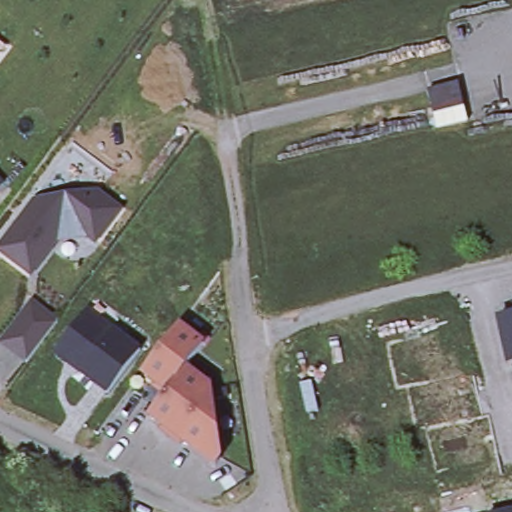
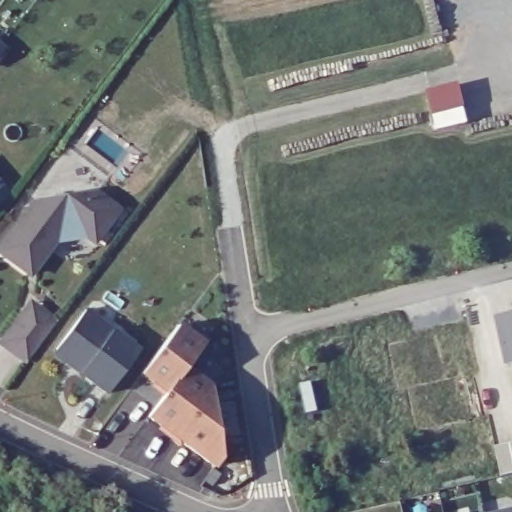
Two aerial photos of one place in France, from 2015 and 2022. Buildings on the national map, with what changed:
unchanged [(460,83),(469,122),(439,129),(428,89),(460,83)]
unchanged [(0,183),(0,181),(1,182),(0,183)]
unchanged [(0,247),(0,245),(37,195),(95,187),(120,206),(96,239),(87,232),(58,236),(31,271),(0,247)]
unchanged [(28,359),(2,339),(26,308),(32,300),(48,312),(58,319),(36,347),(28,359)]
unchanged [(58,353),(57,345),(86,306),(141,347),(108,390),(81,370),(67,359),(58,353)]
unchanged [(510,365),(500,321),(512,318),(512,364),(510,365)]
unchanged [(186,364),(168,388),(143,370),(145,368),(179,322),(204,340),(186,364)]
unchanged [(168,388),(186,364),(211,383),(175,432),(150,413),(168,388)]
unchanged [(211,383),(212,384),(223,454),(217,462),(175,432),(211,383)]
unchanged [(501,512),(512,509),(512,512),(501,512)]

